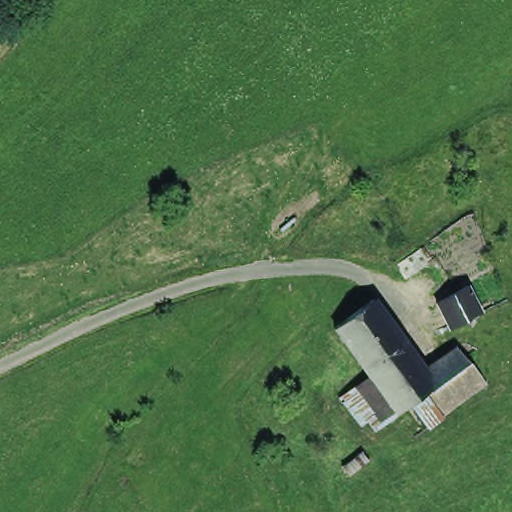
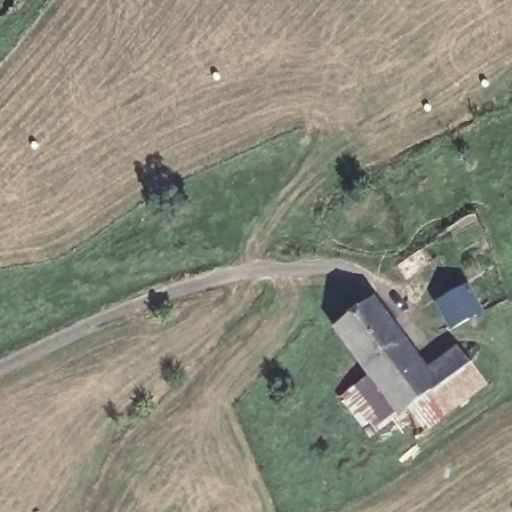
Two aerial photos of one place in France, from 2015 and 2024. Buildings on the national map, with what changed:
unchanged [(452,326),(438,302),(467,285),(481,310),(452,326)]
unchanged [(430,362),(458,344),(490,383),(423,432),(402,404),(368,431),(338,393),(364,368),(333,324),(380,295),(430,362)]

